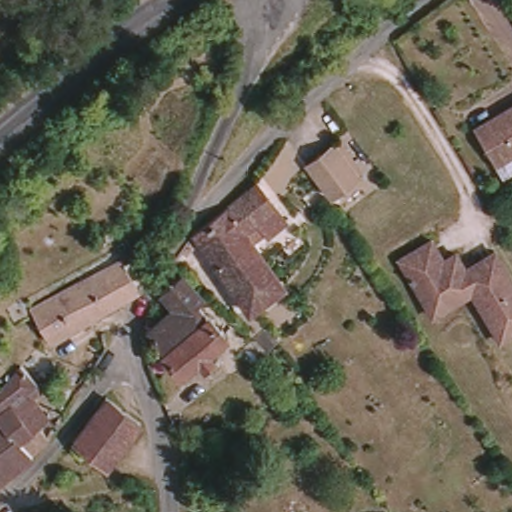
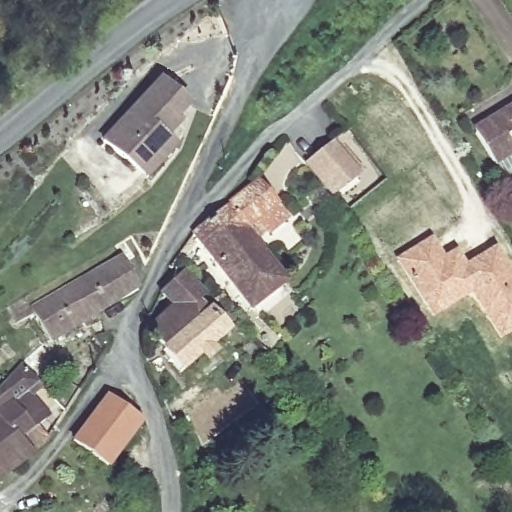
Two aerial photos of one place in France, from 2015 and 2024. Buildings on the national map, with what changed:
new [(177,124),(180,126),(167,141),(177,150),(145,183),(100,143),(160,77),(191,106),(177,124)]
unchanged [(500,119),(512,112),(512,160),(497,169),(477,137),(502,123),(500,119)]
unchanged [(335,140),(362,176),(330,201),(302,166),(335,140)]
unchanged [(229,211),(256,188),(287,227),(267,243),(264,239),(252,248),(282,289),(247,315),(194,240),(229,211)]
unchanged [(400,260),(432,241),(444,260),(457,253),(466,268),(477,271),(480,260),(495,251),(512,279),(512,332),(500,339),(472,293),(432,317),(428,309),(400,260)]
unchanged [(137,291),(99,313),(49,342),(30,309),(119,259),(137,288),(137,291)]
unchanged [(202,301),(203,302),(195,308),(225,342),(181,379),(162,357),(165,356),(147,336),(172,313),(159,299),(182,279),(202,301)]
unchanged [(39,389),(27,399),(49,425),(37,433),(49,446),(30,460),(0,428),(0,394),(20,369),(39,389)]
unchanged [(90,419),(105,400),(139,422),(140,426),(107,468),(72,441),(90,419)]
unchanged [(30,460),(0,484),(0,428),(30,460)]

